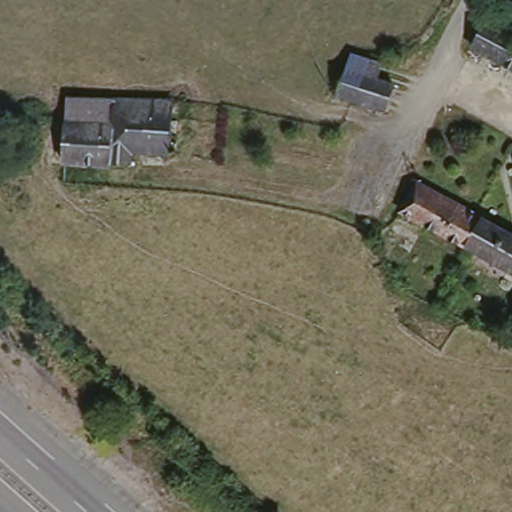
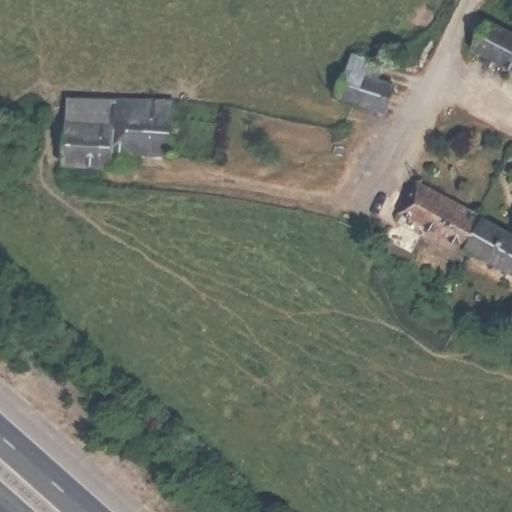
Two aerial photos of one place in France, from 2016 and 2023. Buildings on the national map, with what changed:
unchanged [(512,23),(512,64),(466,41),(484,8),(512,23)]
unchanged [(387,58),(382,73),(398,80),(391,104),(342,88),(355,47),(387,58)]
unchanged [(61,87),(111,88),(109,113),(60,111),(61,87)]
unchanged [(109,113),(111,88),(167,88),(167,139),(124,136),(124,154),(58,150),(60,111),(109,113)]
unchanged [(400,212),(417,184),(475,213),(512,232),(512,268),(400,212)]

